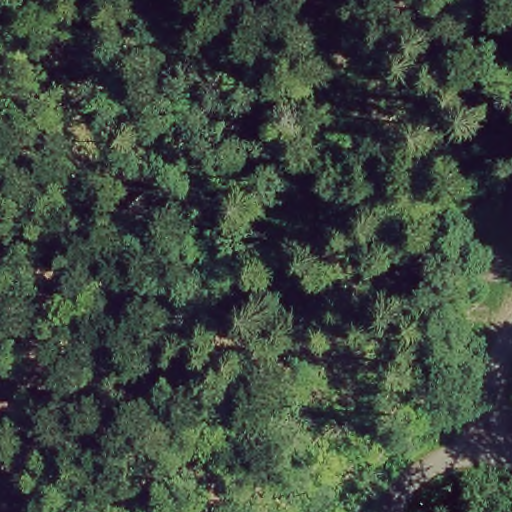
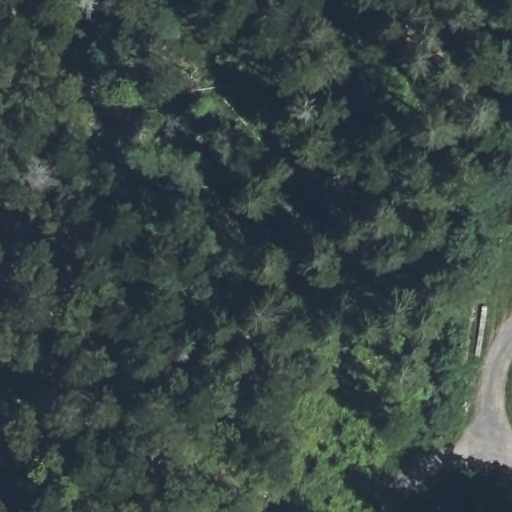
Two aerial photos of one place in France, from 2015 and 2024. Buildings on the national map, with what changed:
unchanged [(500,225),(512,180),(512,181),(512,226),(500,225)]

